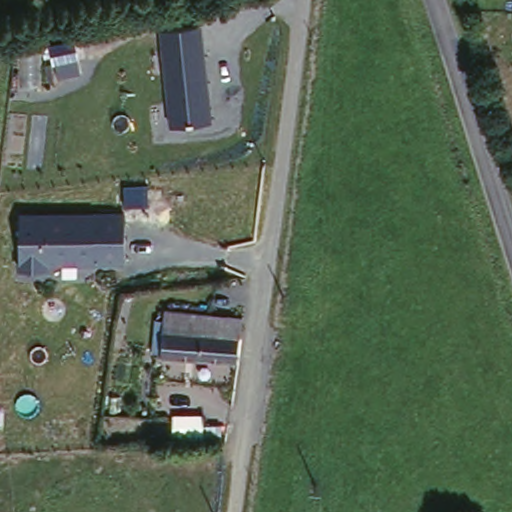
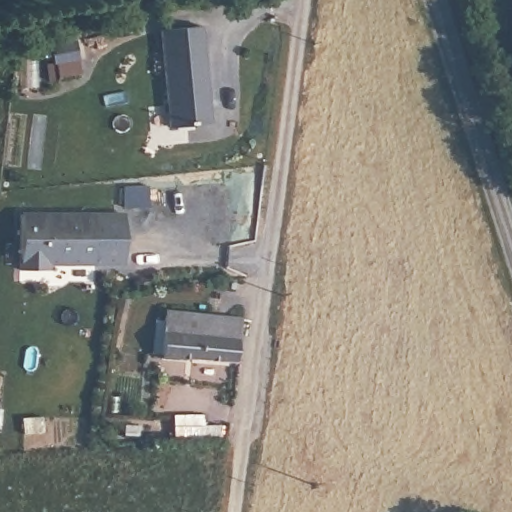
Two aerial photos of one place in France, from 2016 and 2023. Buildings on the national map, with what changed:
unchanged [(157,33),(199,29),(210,122),(167,125),(157,33)]
unchanged [(20,207),(127,208),(129,265),(57,265),(57,271),(20,270),(20,207)]
unchanged [(246,368),(169,359),(160,358),(166,313),(176,314),(211,318),(253,322),(246,368)]
unchanged [(200,442),(170,436),(175,411),(202,416),(200,442)]

